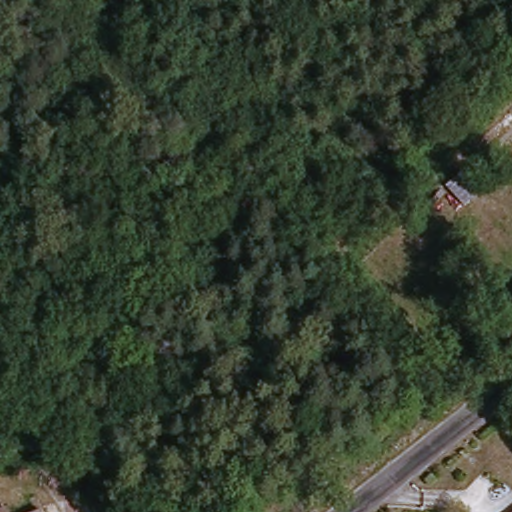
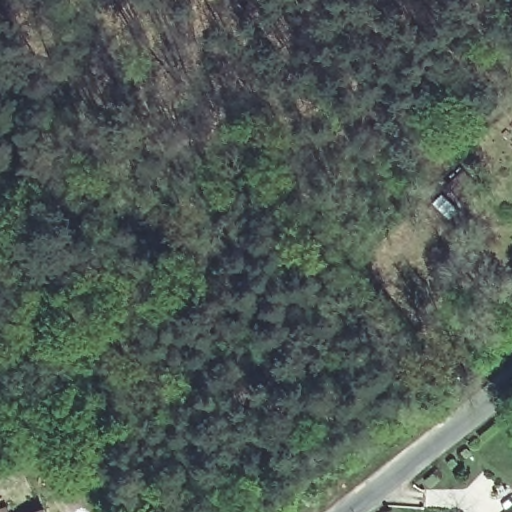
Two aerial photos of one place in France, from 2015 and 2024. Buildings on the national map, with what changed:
unchanged [(44,512),(29,512),(41,506),(44,512)]

